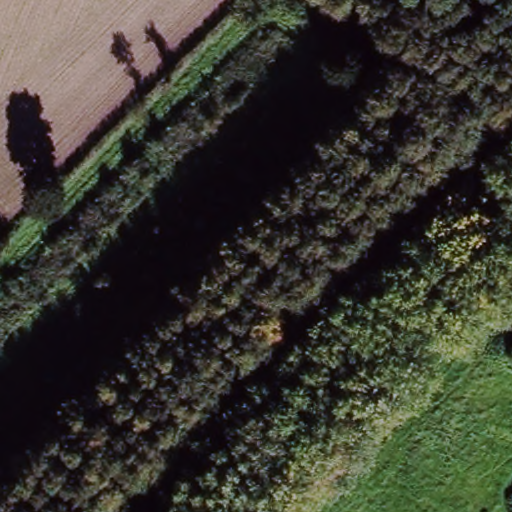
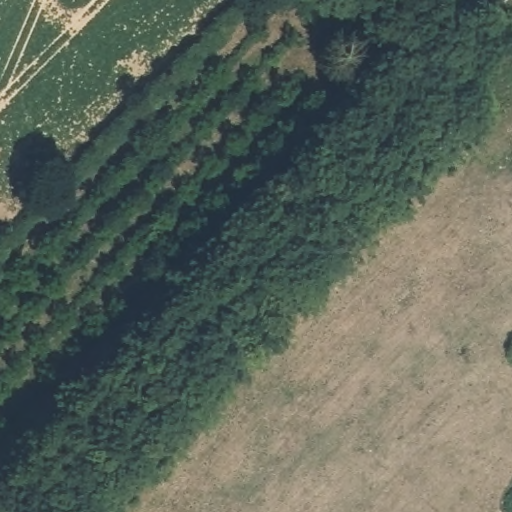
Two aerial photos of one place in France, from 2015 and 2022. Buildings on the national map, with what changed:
[]

